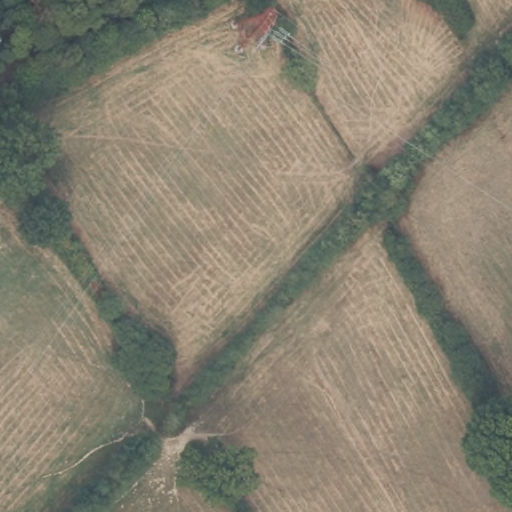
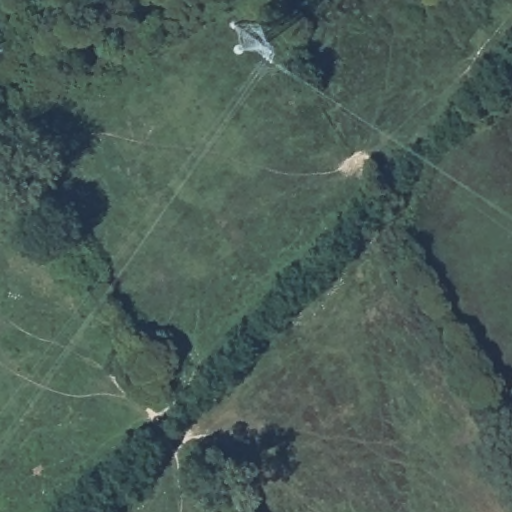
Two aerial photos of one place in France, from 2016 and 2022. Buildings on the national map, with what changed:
[]

